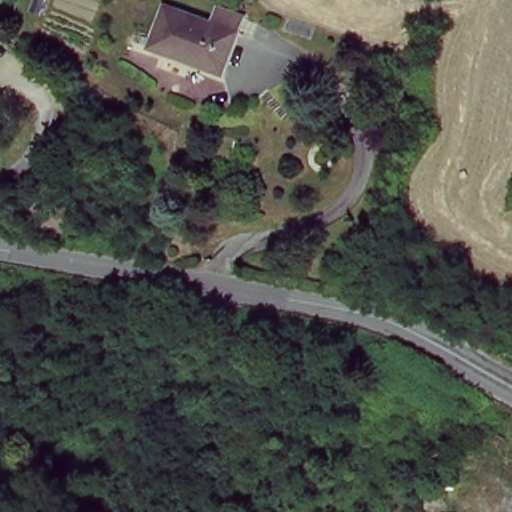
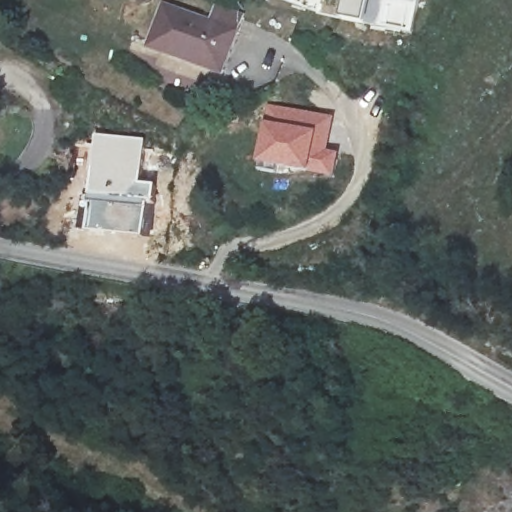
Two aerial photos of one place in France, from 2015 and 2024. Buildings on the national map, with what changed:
new [(344,0),(368,0),(364,23),(339,18),(344,0)]
unchanged [(219,79),(147,55),(159,15),(199,27),(204,10),(238,21),(219,79)]
new [(266,104),(333,116),(329,150),(339,151),(334,178),(256,166),(266,104)]
new [(95,135),(146,139),(141,184),(156,185),(154,205),(148,205),(144,239),(83,233),(95,135)]

